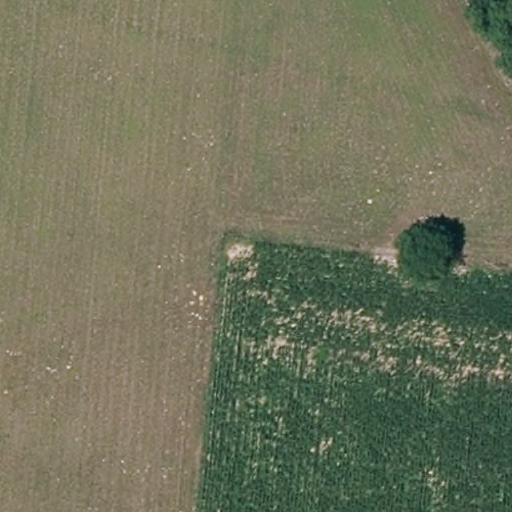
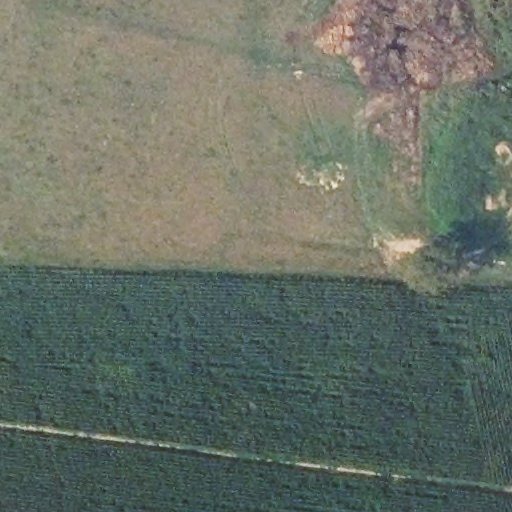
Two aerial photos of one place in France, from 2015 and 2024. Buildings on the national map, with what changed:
[]

